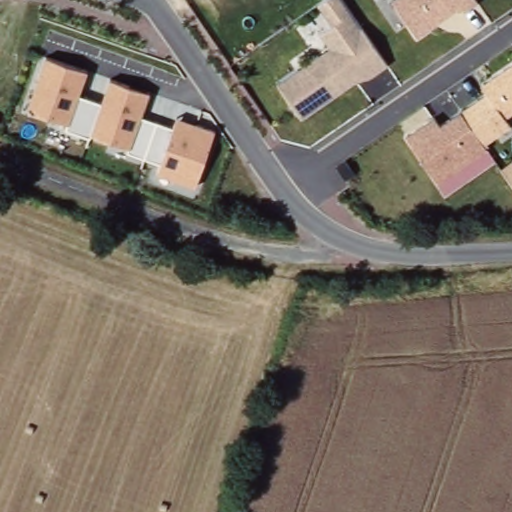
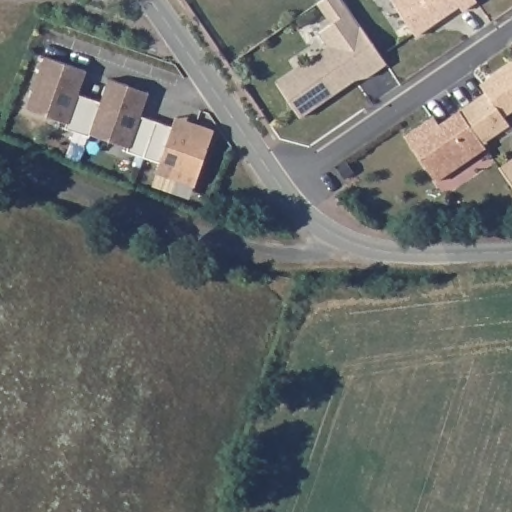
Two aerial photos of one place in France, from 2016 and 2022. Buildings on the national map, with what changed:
unchanged [(303,115),(275,81),(330,45),(323,29),(332,21),(319,0),(344,0),(386,62),(303,115)]
unchanged [(394,0),(475,0),(415,35),(394,0)]
unchanged [(196,186),(158,172),(161,162),(125,150),(126,147),(65,127),(67,122),(27,107),(44,57),(87,71),(80,92),(100,99),(109,77),(151,92),(143,116),(173,125),(177,115),(216,129),(196,186)]
unchanged [(501,110),(510,124),(485,140),(465,105),(488,92),(481,80),(512,60),(512,104),(501,110)]
unchanged [(488,146),(436,179),(405,135),(433,116),(436,121),(465,105),(485,140),(488,146)]

